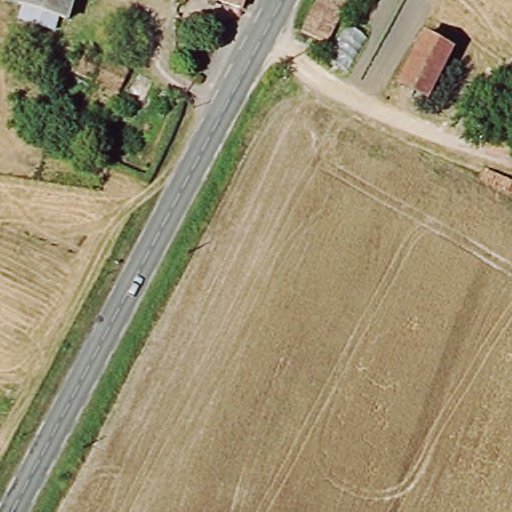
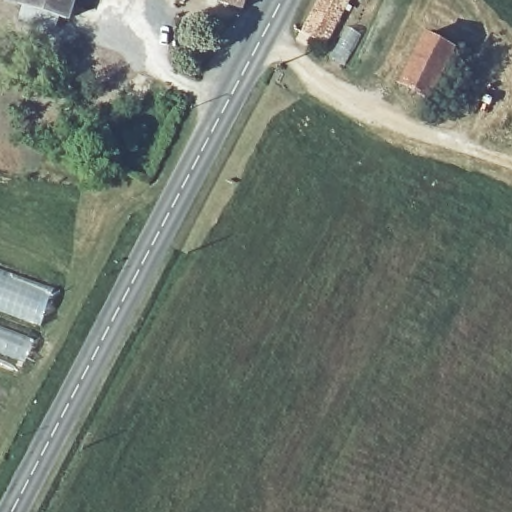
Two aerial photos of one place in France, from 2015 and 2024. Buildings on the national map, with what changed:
unchanged [(64,22),(3,0),(71,0),(64,22)]
unchanged [(235,9),(206,0),(237,0),(235,9)]
unchanged [(313,0),(345,0),(322,48),(294,36),(313,0)]
unchanged [(419,37),(448,51),(422,98),(394,84),(419,37)]
unchanged [(160,68),(143,104),(115,92),(121,75),(90,60),(99,40),(160,68)]
demolished [(28,345),(0,333),(0,275),(46,295),(28,345)]

